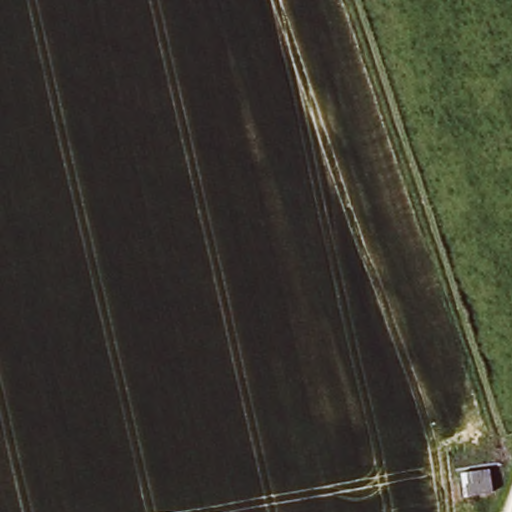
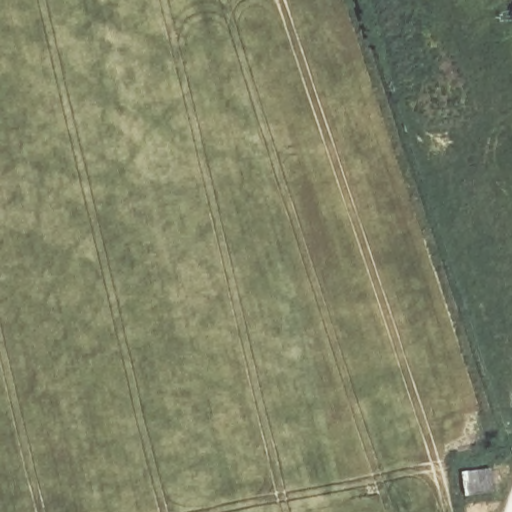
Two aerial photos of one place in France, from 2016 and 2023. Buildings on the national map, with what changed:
unchanged [(494,495),(465,498),(459,471),(486,468),(494,495)]

